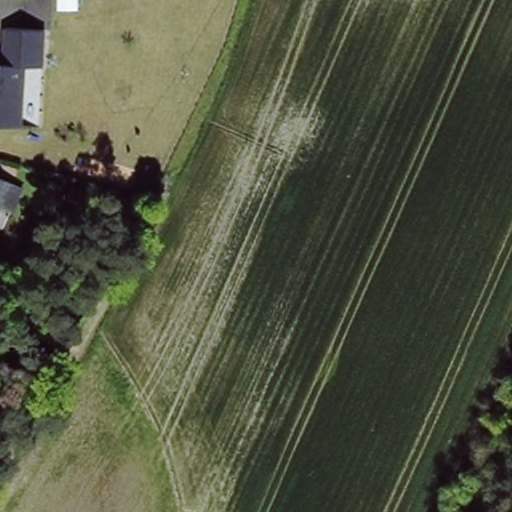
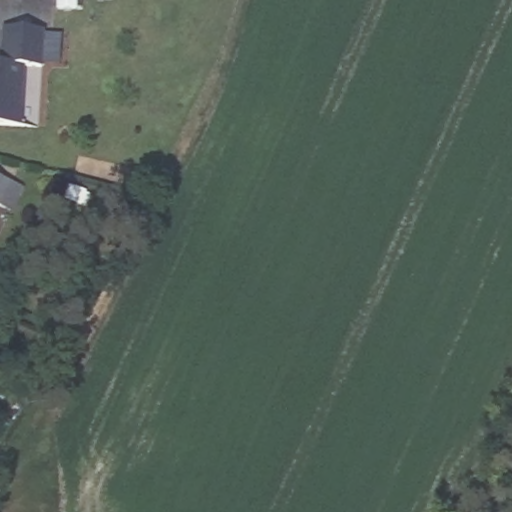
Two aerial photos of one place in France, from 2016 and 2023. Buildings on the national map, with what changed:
unchanged [(38,70),(20,70),(16,131),(0,130),(0,39),(0,32),(39,34),(38,70)]
unchanged [(10,195),(13,196),(21,200),(15,211),(6,207),(5,209),(0,207),(0,182),(13,189),(10,195)]

